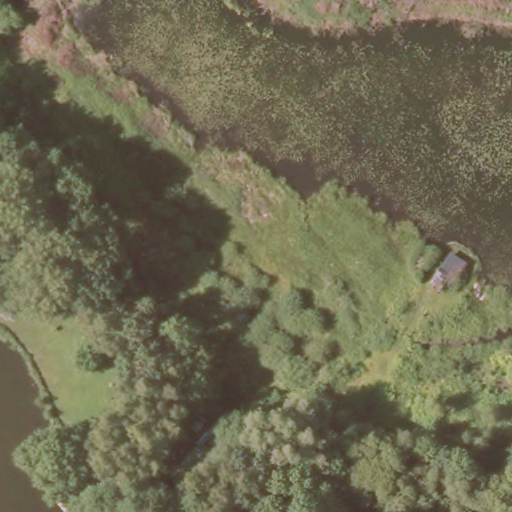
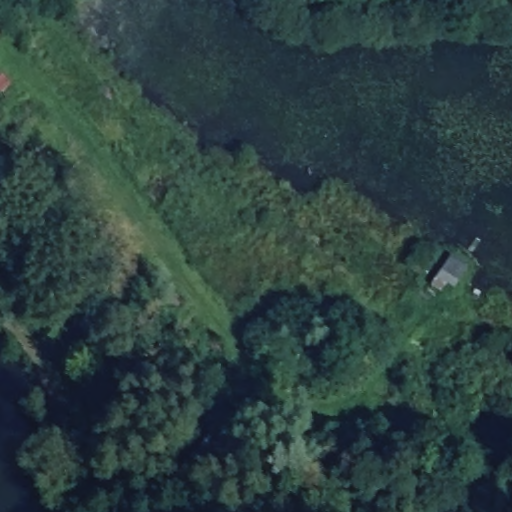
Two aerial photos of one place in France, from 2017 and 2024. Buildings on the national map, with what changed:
unchanged [(190,413),(211,383),(254,420),(230,450),(190,413)]

